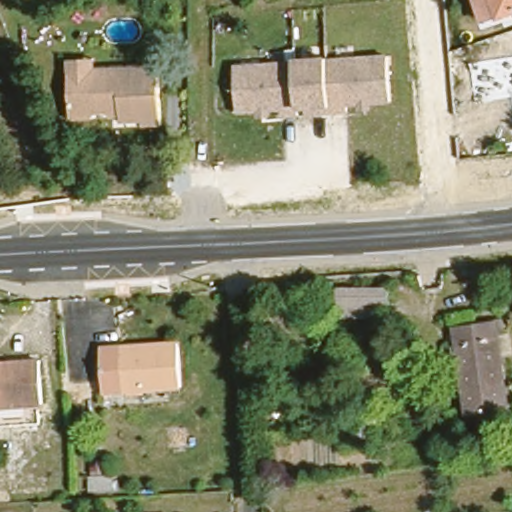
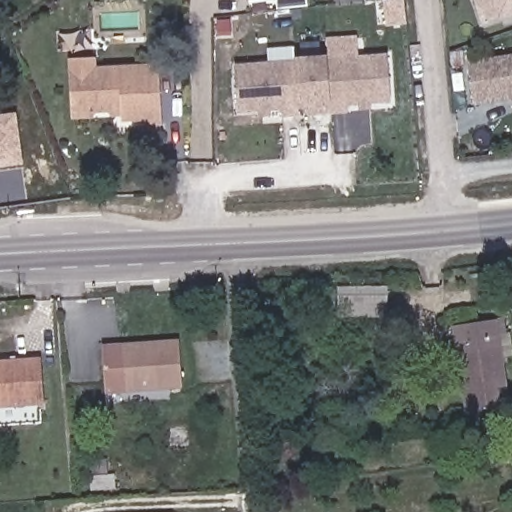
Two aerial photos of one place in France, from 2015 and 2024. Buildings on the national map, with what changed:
unchanged [(480,19),(474,0),(512,0),(512,9),(495,15),(480,19)]
unchanged [(293,56),(328,53),(389,51),(392,102),(347,105),(347,115),(280,118),(279,110),(237,111),(234,61),(293,56)]
unchanged [(73,110),(71,70),(70,55),(95,54),(96,67),(97,66),(160,63),(163,121),(145,122),(145,117),(123,118),(123,112),(113,113),(113,105),(110,109),(94,109),(94,114),(73,115),(73,110)]
new [(467,60),(512,54),(512,99),(473,104),(467,60)]
new [(22,164),(0,168),(0,115),(17,112),(22,164)]
unchanged [(334,319),(335,283),(390,283),(388,318),(334,319)]
unchanged [(494,339),(502,374),(461,380),(454,346),(494,339)]
unchanged [(109,388),(108,363),(107,344),(126,344),(183,342),(185,384),(109,388)]
unchanged [(39,402),(0,406),(0,362),(35,359),(39,397),(39,402)]
unchanged [(502,374),(507,399),(467,407),(461,380),(502,374)]

